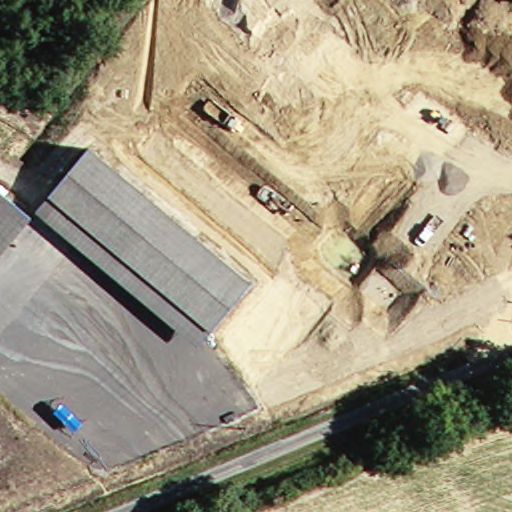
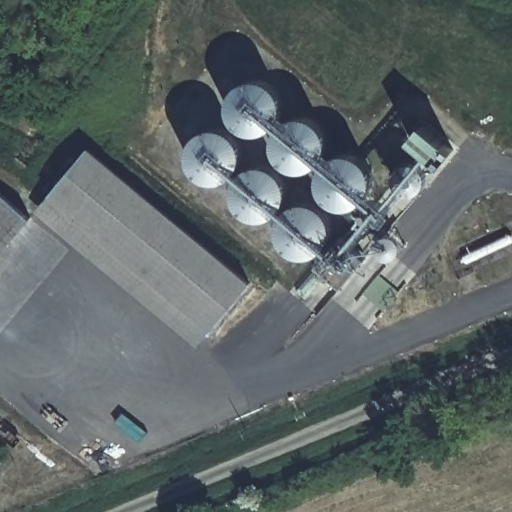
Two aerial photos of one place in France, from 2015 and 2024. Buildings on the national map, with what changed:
new [(372,177),(371,186),(365,197),(359,203),(350,207),(342,208),(332,204),(230,118),(227,105),(229,95),(236,87),(242,81),(253,77),(262,77),(370,169),(372,177)]
new [(422,125),(453,151),(440,167),(424,187),(418,192),(412,194),(405,194),(401,192),(396,186),(394,179),(395,172),(399,167),(407,162),(421,148),(412,138),(422,125)]
new [(342,287),(315,266),(308,256),(301,257),(288,253),(198,178),(193,173),(187,165),(187,156),(188,145),(194,136),(205,128),(217,127),(230,132),(324,210),(327,214),(330,219),(331,227),(345,239),(367,259),(342,287)]
unchanged [(260,280),(222,326),(60,191),(96,146),(260,280)]
unchanged [(0,264),(0,191),(36,220),(0,264)]
new [(401,291),(384,311),(363,294),(380,274),(401,291)]

